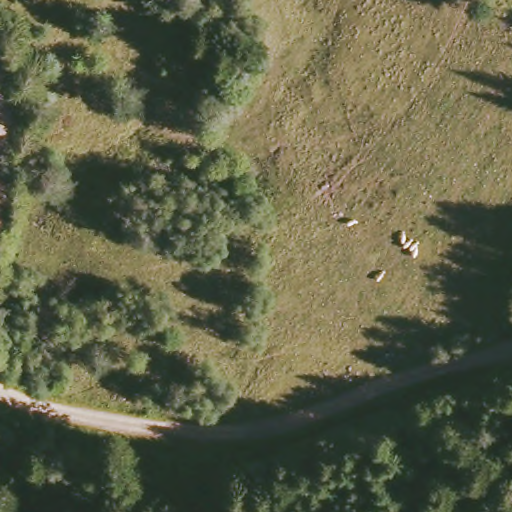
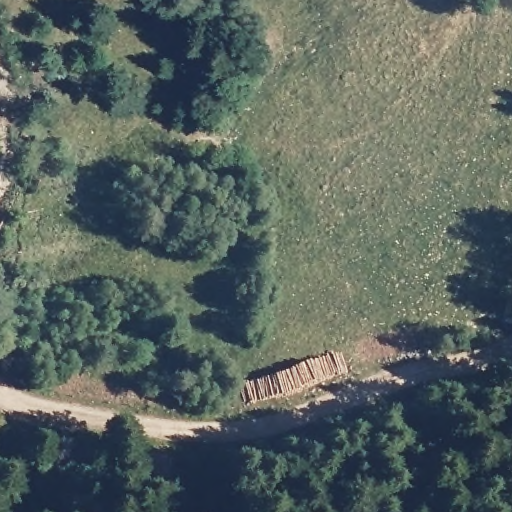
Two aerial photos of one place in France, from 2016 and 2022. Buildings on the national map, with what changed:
[]

